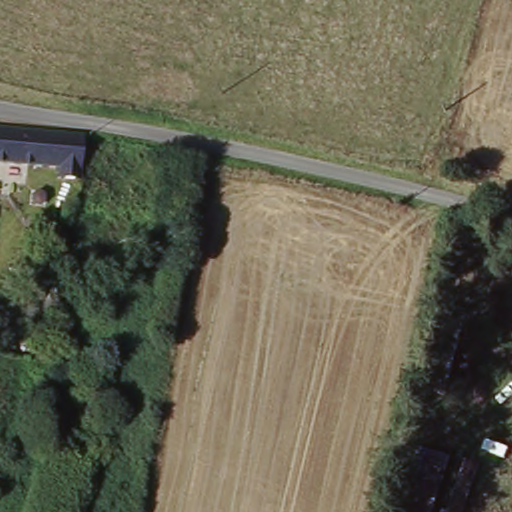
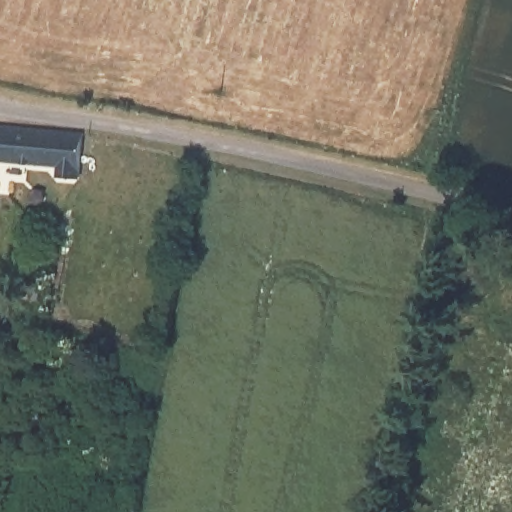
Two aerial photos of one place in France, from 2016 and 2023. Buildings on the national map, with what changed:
unchanged [(87,177),(63,177),(64,157),(0,155),(0,124),(86,130),(87,177)]

